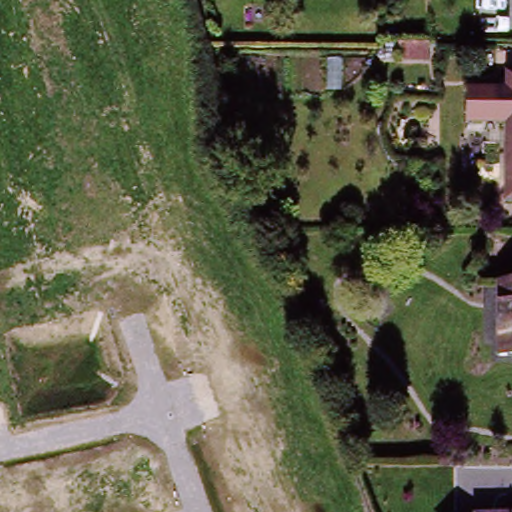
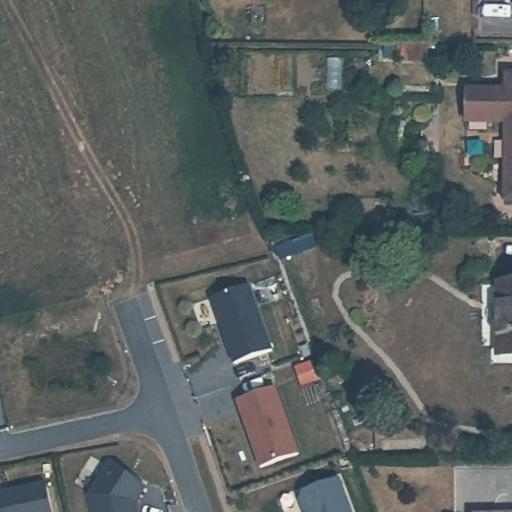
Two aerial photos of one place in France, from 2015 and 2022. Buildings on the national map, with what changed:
unchanged [(423,51),(422,66),(394,66),(394,51),(423,51)]
unchanged [(512,84),(512,210),(487,210),(487,179),(496,179),(495,145),(493,120),(484,117),(484,100),(483,85),(512,84)]
new [(273,350),(233,365),(211,299),(248,286),(273,350)]
unchanged [(494,291),(512,291),(512,361),(494,361),(494,291)]
new [(300,455),(260,470),(236,398),(276,385),(300,455)]
new [(136,502),(138,512),(90,512),(86,495),(105,462),(146,485),(136,502)]
new [(304,512),(298,492),(341,476),(354,512),(304,512)]
new [(52,512),(0,512),(0,493),(44,482),(52,512)]

